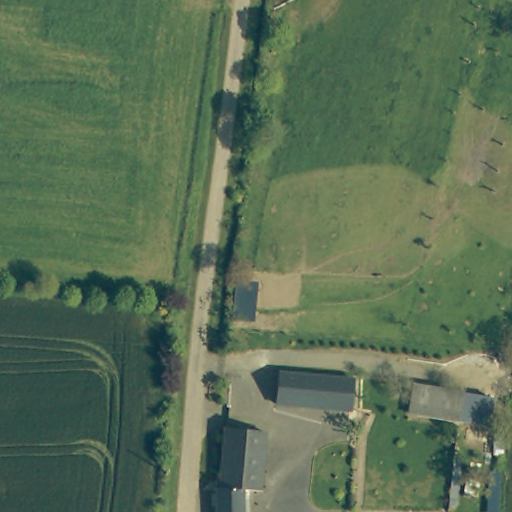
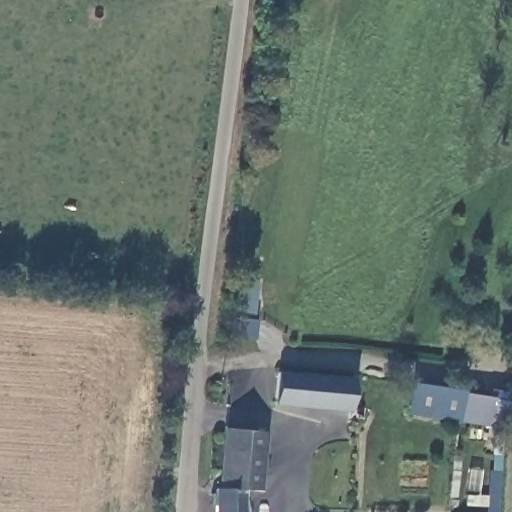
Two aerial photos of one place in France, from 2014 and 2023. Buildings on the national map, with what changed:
unchanged [(237,281),(257,282),(254,321),(232,319),(237,281)]
unchanged [(353,377),(350,410),(276,405),(278,371),(353,377)]
unchanged [(462,430),(414,423),(419,381),(468,390),(462,430)]
unchanged [(269,439),(268,494),(249,493),(249,512),(219,512),(221,492),(228,493),(232,438),(269,439)]

